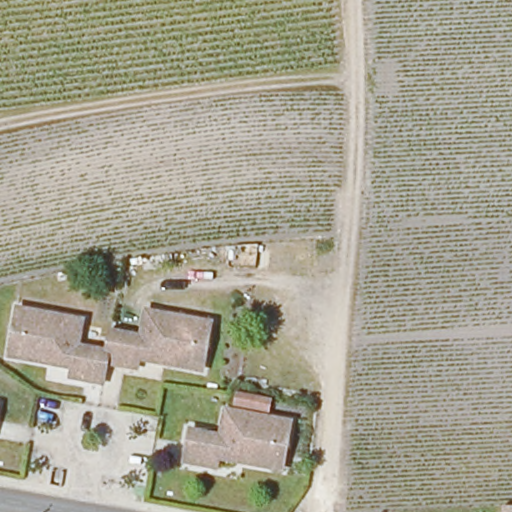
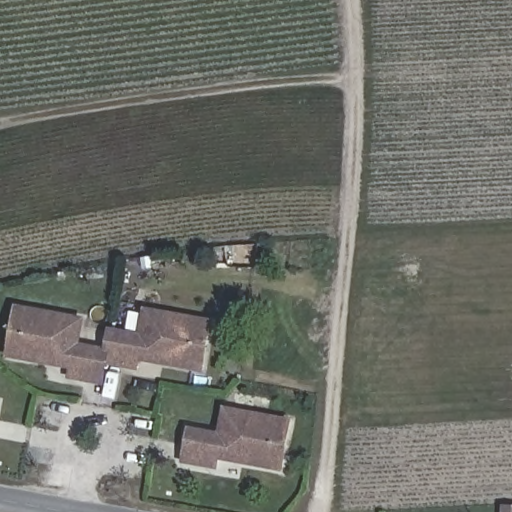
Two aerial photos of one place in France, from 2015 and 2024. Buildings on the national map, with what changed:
unchanged [(135,371),(134,385),(106,381),(102,396),(70,393),(70,380),(18,374),(8,373),(12,347),(16,324),(82,332),(80,356),(91,358),(110,362),(111,343),(126,345),(139,347),(143,323),(210,332),(206,360),(203,381),(192,380),(135,371)]
unchanged [(0,402),(1,402),(0,405),(0,402)]
unchanged [(272,462),(219,453),(216,467),(184,462),(191,428),(207,430),(223,431),(225,409),(290,420),(287,442),(283,463),(272,462)]
unchanged [(508,507),(512,508),(512,512),(507,512),(508,507)]

